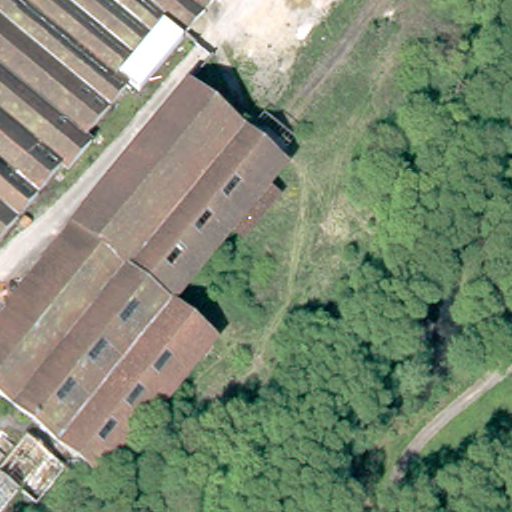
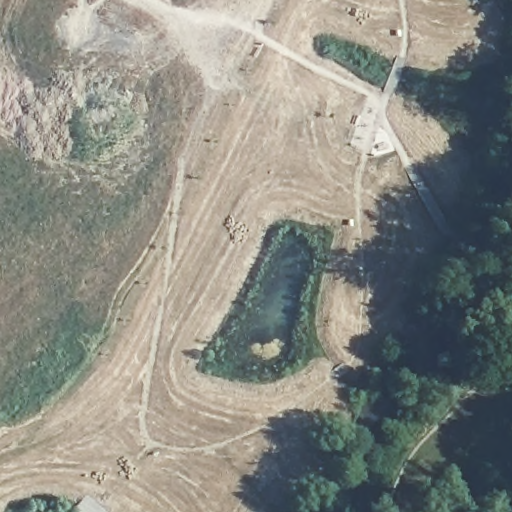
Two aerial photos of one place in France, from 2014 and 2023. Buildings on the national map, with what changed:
demolished [(185,39),(179,33),(136,90),(125,79),(0,236),(0,0),(217,0),(185,39)]
demolished [(189,80),(239,120),(131,255),(137,260),(156,276),(176,291),(171,296),(76,216),(75,215),(189,80)]
demolished [(156,276),(137,260),(131,255),(239,120),(253,131),(276,151),(286,160),(271,179),(238,217),(176,291),(156,276)]
demolished [(58,437),(0,388),(0,309),(76,216),(171,296),(165,302),(58,437)]
demolished [(215,334),(100,472),(58,437),(165,302),(171,296),(215,334)]
demolished [(48,453),(63,465),(60,467),(33,500),(20,489),(20,488),(19,487),(17,487),(16,489),(3,505),(0,508),(0,462),(24,433),(48,453)]

